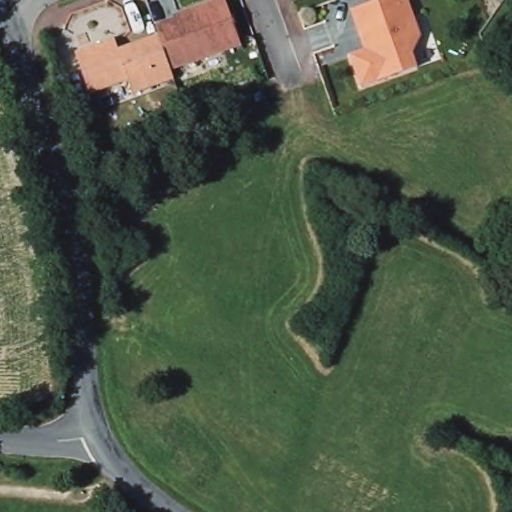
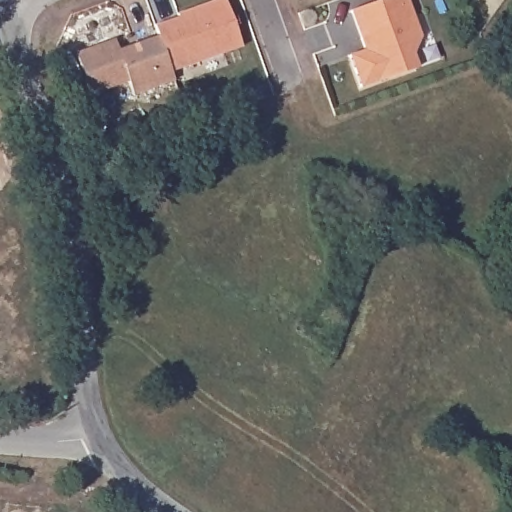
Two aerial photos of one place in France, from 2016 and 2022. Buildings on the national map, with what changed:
unchanged [(215,0),(226,0),(242,46),(171,71),(167,60),(159,35),(158,35),(156,29),(155,25),(179,16),(177,13),(215,0)]
unchanged [(357,10),(385,0),(413,0),(426,36),(417,53),(422,67),(366,87),(355,55),(370,50),(367,39),(357,10)]
unchanged [(118,50),(127,46),(158,35),(159,35),(167,60),(171,71),(174,80),(133,94),(128,80),(90,94),(76,52),(115,39),(118,50)]

